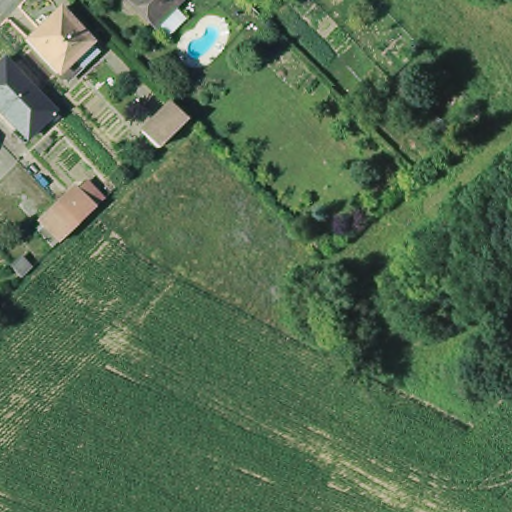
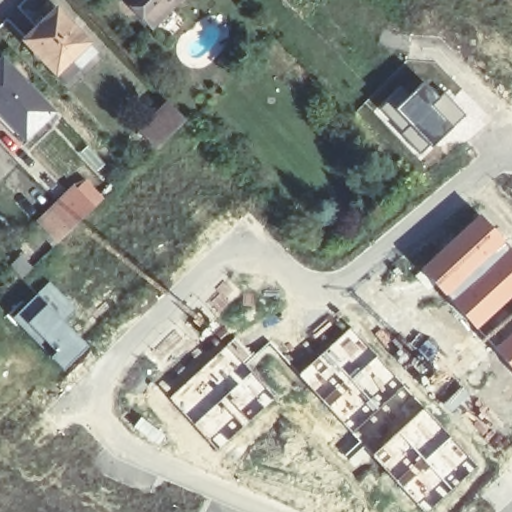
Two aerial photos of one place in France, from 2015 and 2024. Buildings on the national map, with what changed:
unchanged [(132,0),(173,0),(153,21),(132,0)]
unchanged [(58,72),(57,73),(25,41),(57,10),(89,42),(87,44),(97,53),(82,66),(67,81),(58,72)]
unchanged [(44,96),(17,123),(0,104),(0,59),(5,55),(44,96)]
new [(385,108),(387,109),(390,105),(392,108),(424,80),(439,96),(445,91),(467,114),(420,158),(380,113),(385,108)]
unchanged [(22,139),(0,115),(0,104),(17,123),(44,96),(55,108),(22,139)]
unchanged [(146,136),(175,109),(190,125),(162,153),(146,136)]
unchanged [(77,193),(95,213),(78,229),(67,240),(59,248),(41,229),(50,220),(60,210),(77,193)]
new [(479,213),(512,250),(512,296),(476,330),(419,269),(479,213)]
new [(49,280),(77,309),(65,321),(89,345),(62,370),(10,317),(49,280)]
new [(350,326),(405,388),(352,434),(297,374),(350,326)]
new [(512,329),(512,368),(492,347),(512,329)]
new [(192,425),(167,396),(234,337),(252,357),(245,364),(250,371),(267,392),(262,396),(255,402),(241,413),(209,442),(192,425)]
new [(472,462),(461,475),(463,477),(452,488),(447,483),(430,495),(415,479),(403,490),(370,455),(422,407),(472,462)]
new [(370,455),(355,469),(347,459),(362,445),(370,455)]

